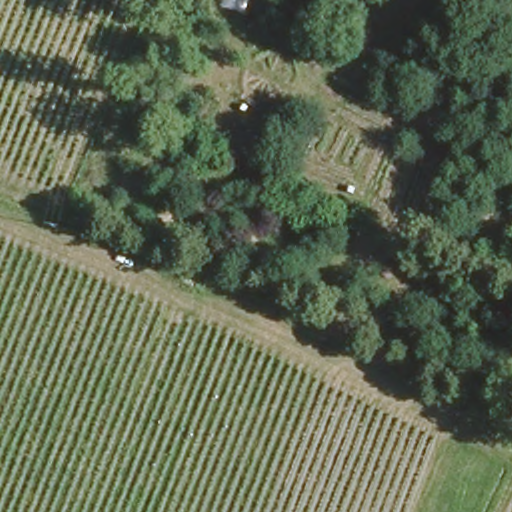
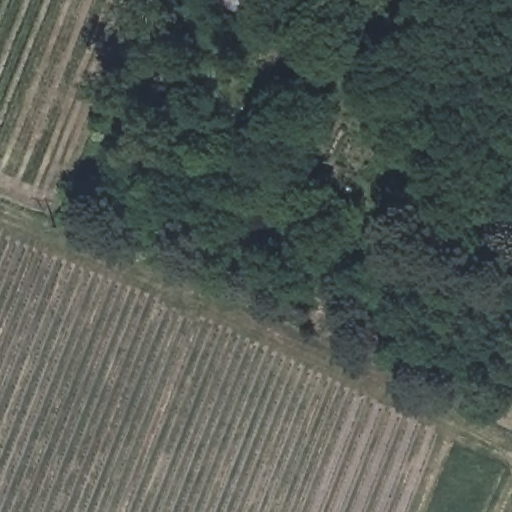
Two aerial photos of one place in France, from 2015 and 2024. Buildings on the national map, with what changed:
[]

